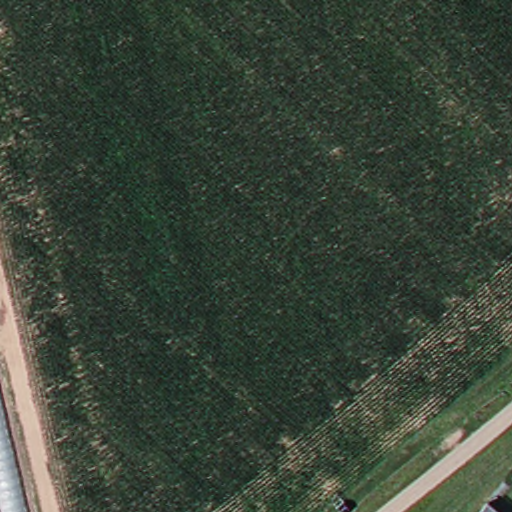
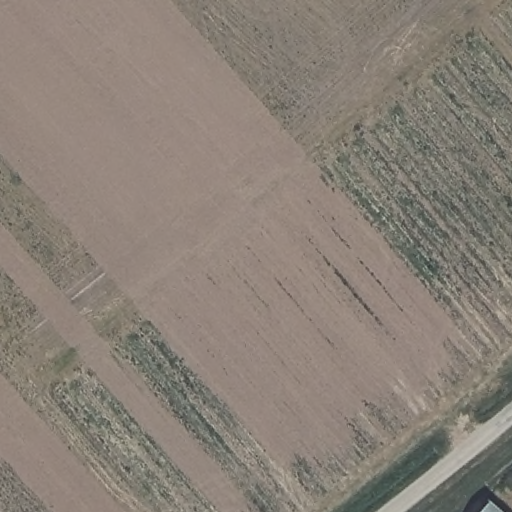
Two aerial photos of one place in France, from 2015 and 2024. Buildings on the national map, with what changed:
demolished [(0,388),(29,512),(0,512),(0,388)]
unchanged [(491,497),(508,512),(478,512),(491,497)]

